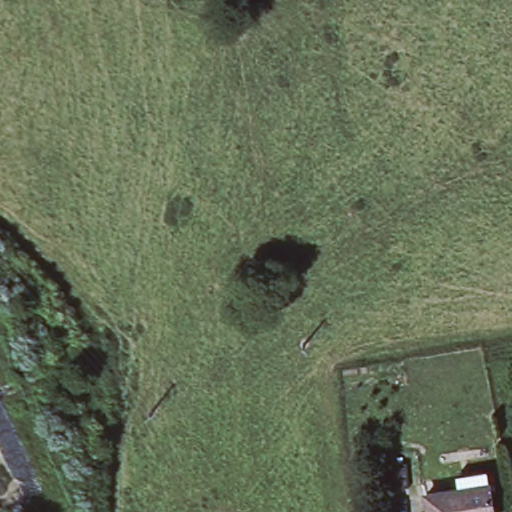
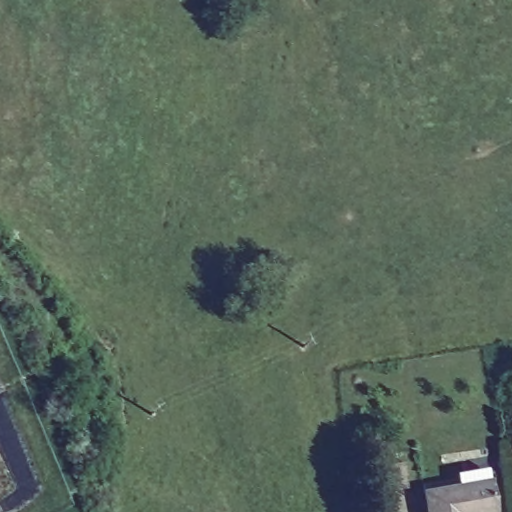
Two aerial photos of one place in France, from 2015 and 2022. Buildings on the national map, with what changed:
unchanged [(489,475),(495,509),(477,512),(429,512),(425,487),(459,481),(489,475)]

